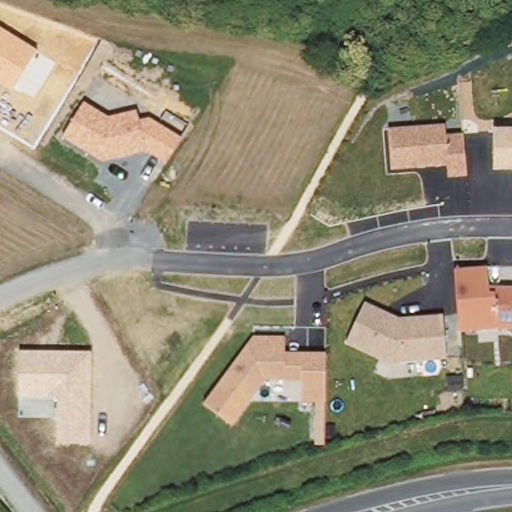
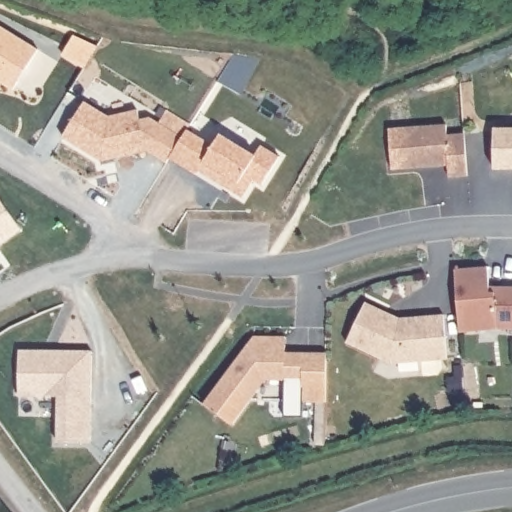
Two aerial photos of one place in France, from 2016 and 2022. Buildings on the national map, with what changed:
unchanged [(37,48),(11,91),(0,85),(0,25),(37,48)]
unchanged [(110,115),(137,109),(139,119),(149,116),(182,136),(166,164),(145,152),(101,162),(61,136),(82,100),(110,115)]
new [(261,186),(252,181),(242,196),(225,187),(222,190),(169,158),(182,136),(159,122),(167,109),(190,124),(187,129),(215,144),(220,134),(254,155),(260,145),(278,156),(261,186)]
unchanged [(387,127),(443,123),(445,134),(462,133),(467,175),(446,177),(444,164),(390,169),(387,127)]
unchanged [(512,128),(512,169),(492,169),(492,128),(512,128)]
new [(0,244),(0,202),(21,229),(0,244)]
unchanged [(487,266),(488,285),(512,285),(512,329),(496,328),(460,331),(454,269),(487,266)]
unchanged [(398,316),(447,313),(452,360),(395,364),(348,341),(366,300),(398,316)]
unchanged [(202,403),(252,336),(284,336),(285,351),(325,352),(325,400),(325,444),(315,445),(314,401),(302,401),(301,380),(264,380),(232,423),(202,403)]
unchanged [(91,351),(92,444),(59,445),(57,397),(19,397),(19,351),(91,351)]

